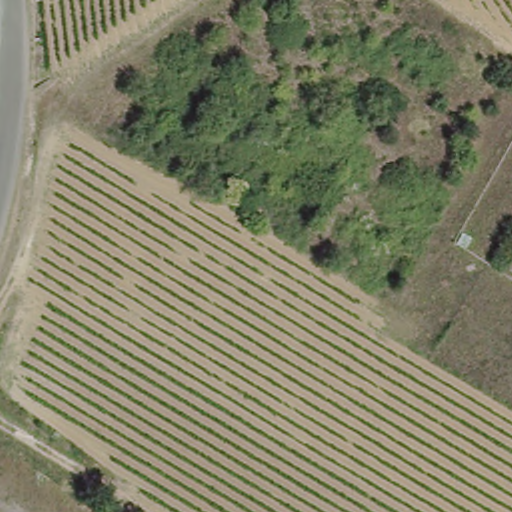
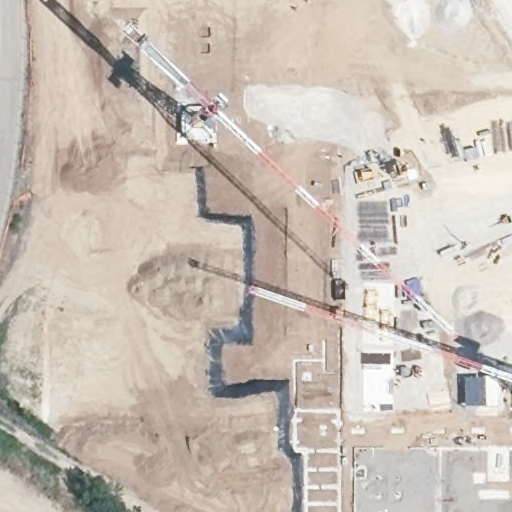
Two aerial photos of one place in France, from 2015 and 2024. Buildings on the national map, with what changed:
new [(324,361),(325,374),(339,374),(341,512),(307,512),(307,448),(297,447),(296,410),(296,361),(324,361)]
new [(512,512),(355,512),(354,448),(512,448),(512,512)]

